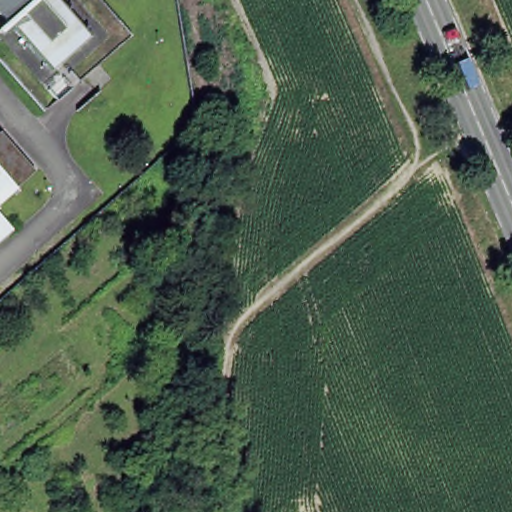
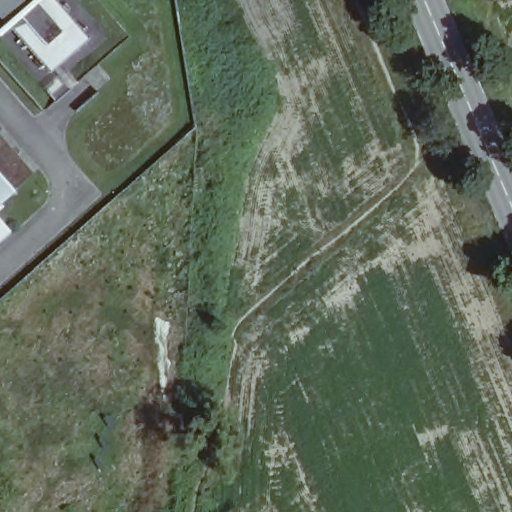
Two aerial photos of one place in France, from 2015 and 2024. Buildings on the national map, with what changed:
unchanged [(0,38),(0,33),(7,27),(2,21),(0,19),(0,0),(53,0),(90,41),(50,76),(9,30),(0,38)]
unchanged [(0,133),(34,171),(14,189),(0,173),(0,133)]
unchanged [(0,201),(0,173),(14,189),(0,201)]
unchanged [(0,241),(0,218),(12,231),(0,241)]

